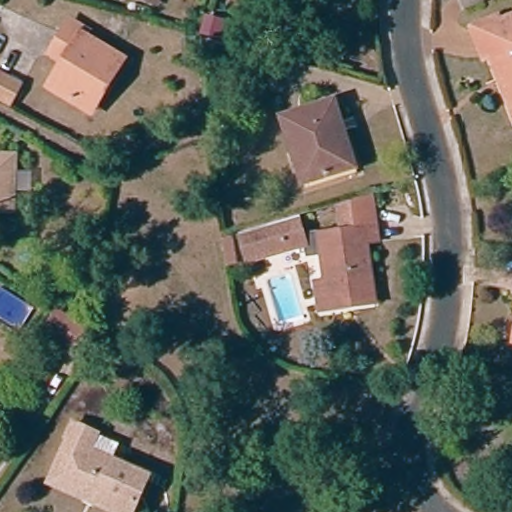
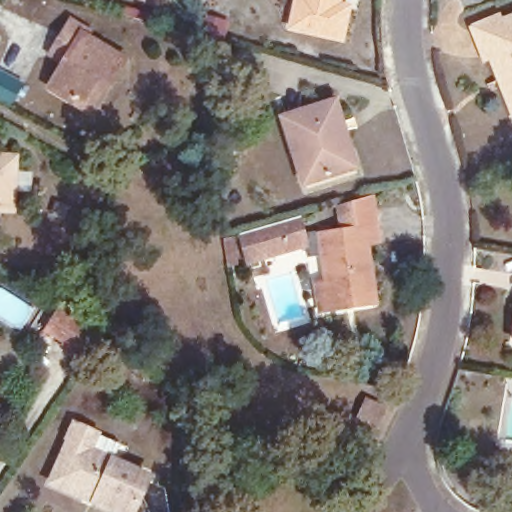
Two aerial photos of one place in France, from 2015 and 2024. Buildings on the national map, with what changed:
unchanged [(136,4),(137,0),(163,0),(160,11),(136,4)]
new [(342,2),(352,4),(343,44),(285,30),(292,0),(343,0),(342,2)]
new [(205,13),(230,21),(222,41),(199,33),(205,13)]
unchanged [(86,107),(51,86),(64,63),(50,56),(62,35),(71,20),(89,30),(85,37),(122,59),(112,78),(95,112),(86,107)]
unchanged [(492,61),(483,66),(468,31),(494,20),(497,28),(512,22),(512,113),(492,61)]
unchanged [(27,85),(16,108),(0,100),(0,77),(2,71),(27,85)]
unchanged [(303,185),(282,118),(333,102),(341,126),(336,128),(347,170),(303,185)]
unchanged [(17,214),(0,214),(0,160),(19,160),(17,214)]
unchanged [(318,283),(331,281),(327,253),(313,255),(308,245),(251,260),(243,232),(302,216),(307,237),(350,231),(343,206),(374,198),(375,197),(378,228),(380,228),(382,243),(370,245),(377,304),(356,307),(322,311),(318,283)]
unchanged [(54,351),(57,344),(41,333),(56,309),(72,320),(84,328),(95,335),(77,365),(54,351)]
unchanged [(382,409),(371,426),(357,418),(368,400),(382,409)]
unchanged [(0,411),(0,410),(1,411),(0,411)]
unchanged [(51,487),(67,451),(59,448),(66,431),(112,451),(105,467),(141,482),(129,512),(95,512),(85,508),(89,503),(51,487)]

